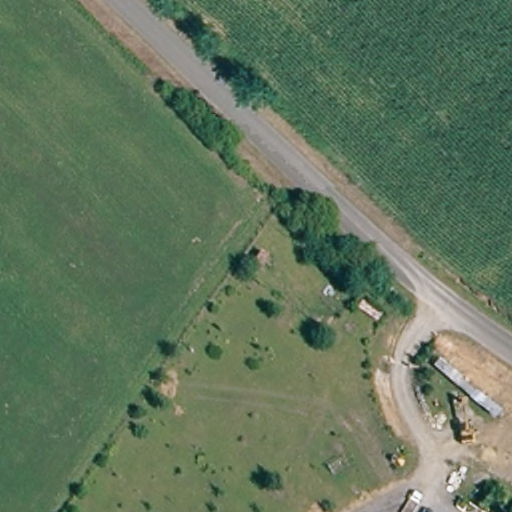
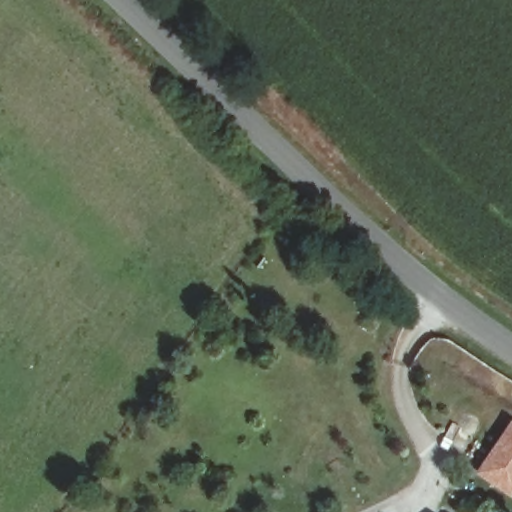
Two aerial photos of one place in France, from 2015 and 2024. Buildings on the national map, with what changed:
new [(512,420),(512,497),(476,473),(512,420)]
demolished [(512,437),(512,459),(503,454),(512,437)]

